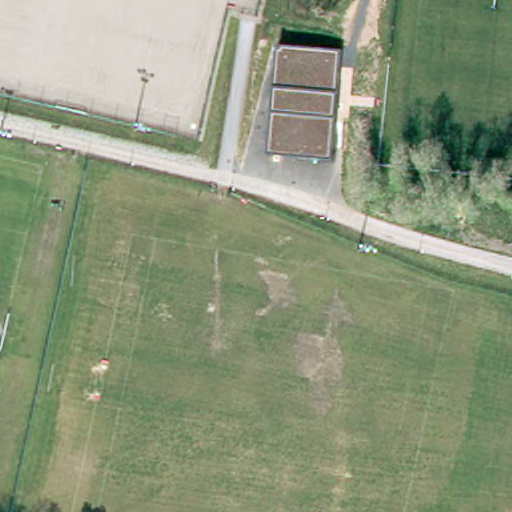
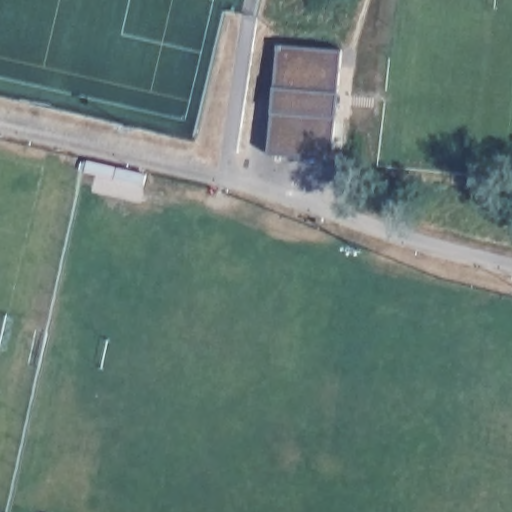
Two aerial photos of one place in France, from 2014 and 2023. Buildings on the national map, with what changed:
unchanged [(339,50),(329,157),(271,151),(277,45),(339,50)]

